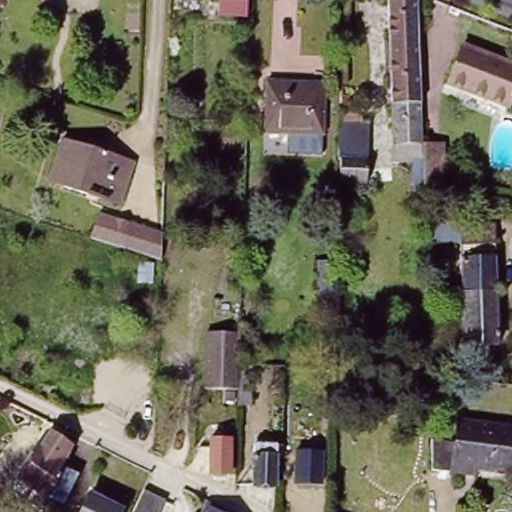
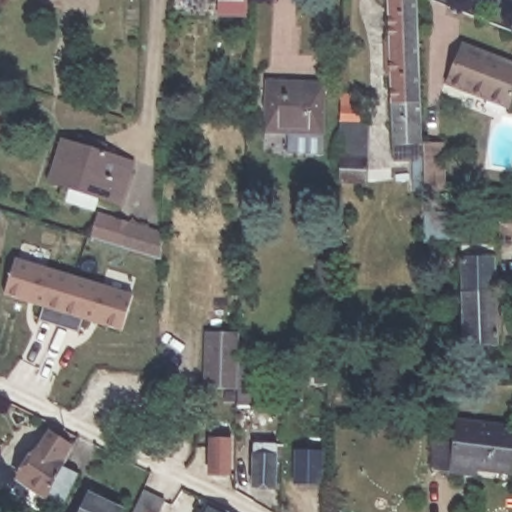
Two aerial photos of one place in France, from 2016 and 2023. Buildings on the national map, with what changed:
unchanged [(184,0),(241,0),(241,4),(183,2),(184,0)]
unchanged [(389,0),(416,0),(417,1),(422,166),(392,166),(389,0)]
unchanged [(512,68),(512,99),(506,113),(445,88),(461,46),(512,68)]
unchanged [(265,135),(269,86),(327,90),(325,138),(265,135)]
unchanged [(348,108),(353,107),(353,101),(360,102),(359,108),(374,109),(373,123),(348,123),(347,130),(340,130),(342,96),(349,96),(348,108)]
unchanged [(48,188),(62,146),(78,152),(80,145),(119,156),(117,164),(133,170),(120,211),(48,188)]
unchanged [(366,183),(337,183),(338,160),(367,161),(366,183)]
unchanged [(87,241),(97,216),(155,233),(153,261),(87,241)]
unchanged [(460,251),(423,250),(422,219),(450,219),(450,232),(493,232),(496,350),(461,350),(460,251)]
new [(122,330),(80,319),(77,331),(40,319),(43,307),(4,295),(17,258),(133,293),(122,330)]
unchanged [(317,262),(335,262),(333,303),(315,302),(317,262)]
unchanged [(238,367),(253,368),(253,409),(237,408),(237,393),(203,392),(203,337),(238,337),(238,367)]
unchanged [(430,442),(452,444),(455,441),(457,423),(512,429),(512,470),(512,474),(453,468),(452,476),(431,474),(430,442)]
unchanged [(60,497),(48,491),(45,498),(13,478),(45,435),(67,448),(62,460),(75,466),(60,497)]
unchanged [(232,480),(209,479),(210,444),(220,444),(232,444),(232,480)]
unchanged [(255,475),(257,447),(277,448),(275,476),(255,475)]
unchanged [(293,459),(320,459),(320,489),(292,488),(293,459)]
unchanged [(115,512),(80,512),(88,496),(115,512)]
unchanged [(160,512),(135,512),(142,496),(163,506),(160,512)]
unchanged [(209,510),(213,512),(208,512),(209,510)]

